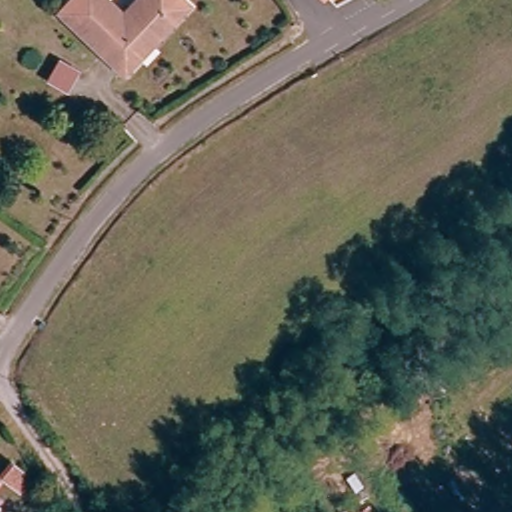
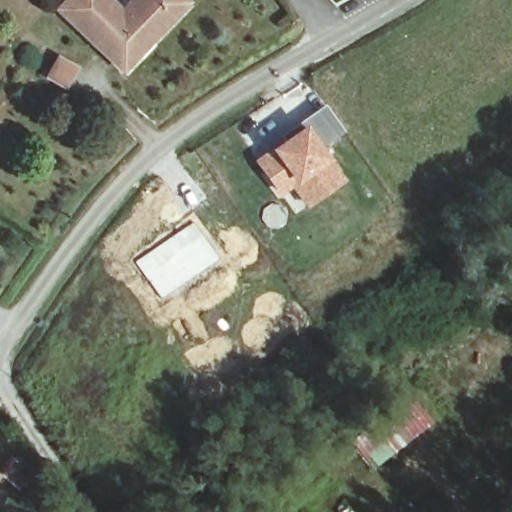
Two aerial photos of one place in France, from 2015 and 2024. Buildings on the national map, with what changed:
unchanged [(58,11),(68,0),(113,0),(121,7),(128,0),(189,0),(153,42),(130,69),(120,61),(58,11)]
new [(325,102),(346,132),(323,148),(303,123),(301,125),(299,121),(325,102)]
new [(301,125),(303,123),(323,148),(345,178),(306,210),(290,189),(277,198),(252,160),(301,125)]
new [(192,222),(217,257),(160,297),(135,262),(192,222)]
new [(350,440),(407,393),(430,421),(371,468),(350,440)]
unchanged [(13,480),(25,466),(32,472),(31,480),(38,487),(30,495),(13,480)]
demolished [(0,476),(8,485),(0,494),(0,476)]

